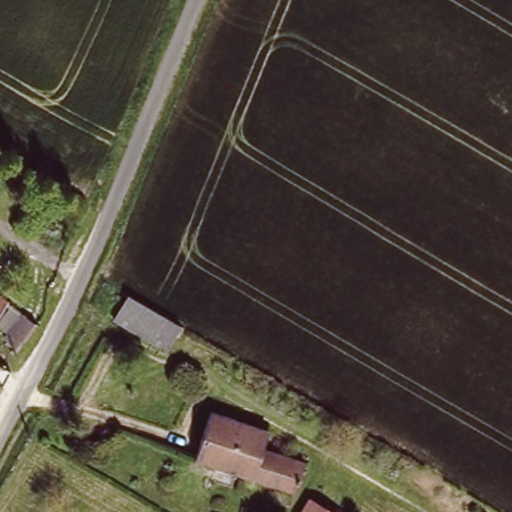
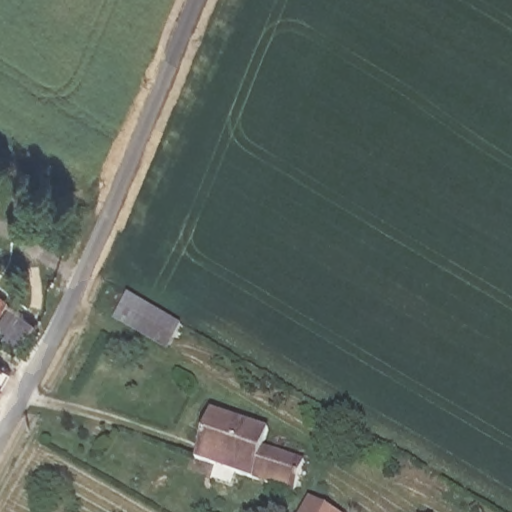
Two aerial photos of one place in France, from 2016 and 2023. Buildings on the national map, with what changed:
unchanged [(168,351),(117,320),(132,295),(183,325),(168,351)]
unchanged [(7,303),(0,312),(0,299),(7,303)]
unchanged [(6,348),(27,322),(37,331),(17,356),(6,348)]
unchanged [(11,372),(5,382),(0,392),(0,366),(11,372)]
unchanged [(267,431),(260,447),(302,462),(285,511),(262,502),(268,487),(192,460),(210,410),(267,431)]
unchanged [(320,485),(353,506),(350,512),(303,512),(320,485)]

